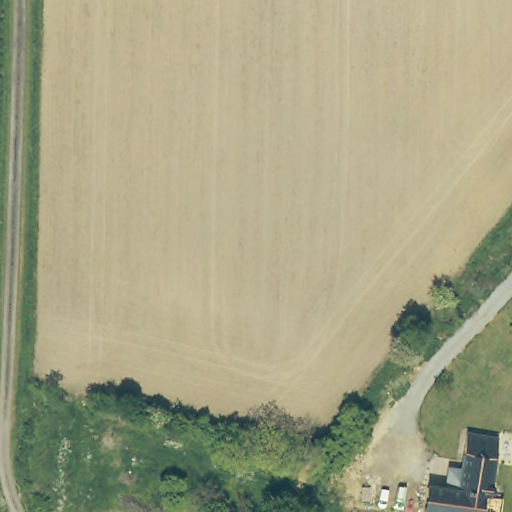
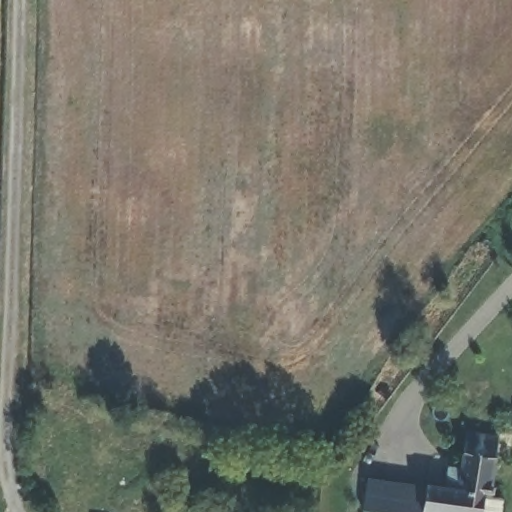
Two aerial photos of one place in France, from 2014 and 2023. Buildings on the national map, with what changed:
unchanged [(463,430),(496,433),(487,494),(481,493),(478,512),(436,512),(420,510),(423,482),(442,485),(445,467),(457,469),(463,430)]
new [(422,496),(420,510),(436,512),(364,512),(370,476),(423,482),(422,496)]
new [(480,497),(503,500),(502,512),(478,512),(480,497)]

